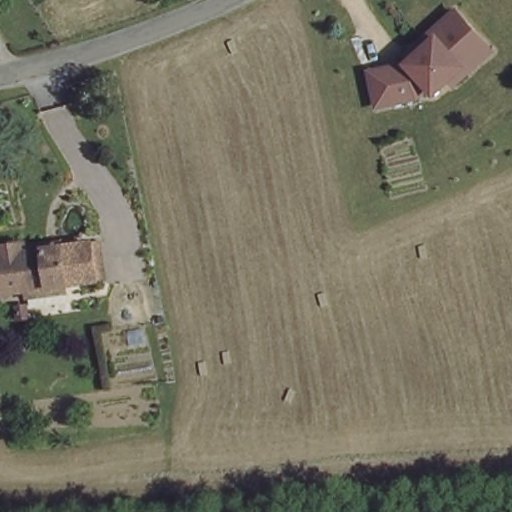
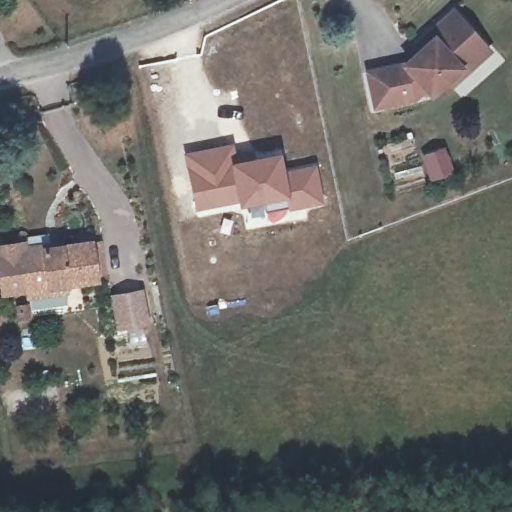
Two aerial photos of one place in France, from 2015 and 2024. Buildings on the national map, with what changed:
unchanged [(459,84),(455,79),(440,92),(434,86),(423,96),(384,105),(376,71),(413,63),(428,49),(424,44),(437,32),(462,10),(488,37),(498,49),(459,84)]
new [(234,144),(236,152),(251,149),(251,158),(280,153),(284,167),(314,165),(321,202),(265,212),(262,202),(240,207),(238,197),(195,210),(185,153),(234,144)]
unchanged [(24,291),(24,287),(0,290),(0,247),(20,244),(21,250),(41,246),(59,243),(60,250),(92,244),(97,280),(63,285),(65,292),(28,299),(24,291)]
new [(138,292),(144,322),(130,325),(116,327),(111,297),(125,294),(138,292)]

